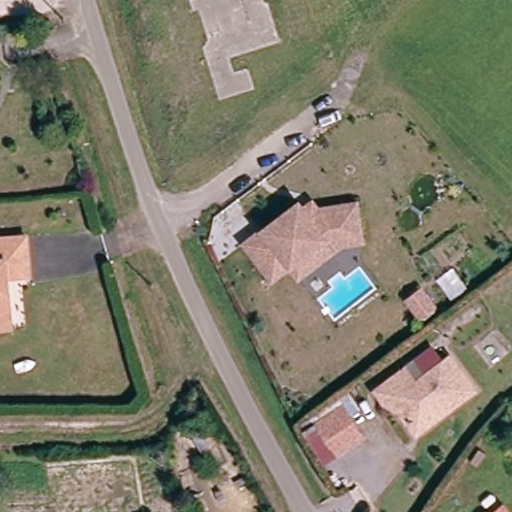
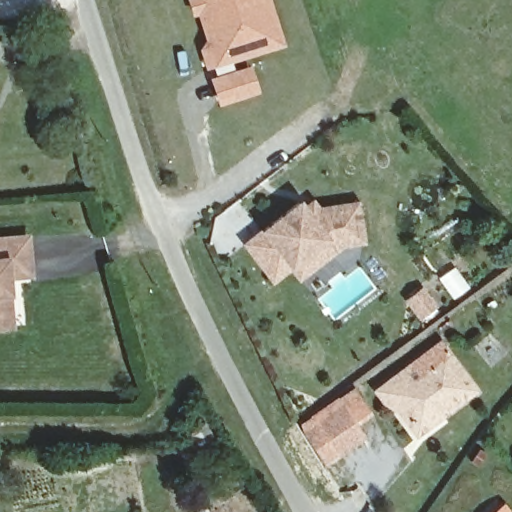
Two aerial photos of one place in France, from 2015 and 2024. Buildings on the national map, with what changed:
new [(205,70),(198,50),(205,40),(196,15),(191,15),(187,0),(270,0),(284,46),(205,70)]
new [(260,91),(216,106),(207,79),(250,64),(260,91)]
unchanged [(290,264),(271,278),(244,242),(298,200),(303,207),(311,199),(317,207),(355,201),(361,239),(343,242),(298,275),(290,264)]
unchanged [(32,272),(3,276),(5,292),(13,290),(16,324),(0,326),(0,237),(30,234),(32,272)]
unchanged [(419,304),(404,315),(401,311),(392,299),(395,296),(407,288),(419,304)]
unchanged [(415,428),(393,400),(388,404),(376,389),(405,368),(431,347),(442,360),(450,354),(475,387),(443,412),(417,432),(415,428)]
unchanged [(342,408),(362,438),(335,457),(313,426),(342,408)]
unchanged [(510,512),(497,512),(505,506),(510,512)]

